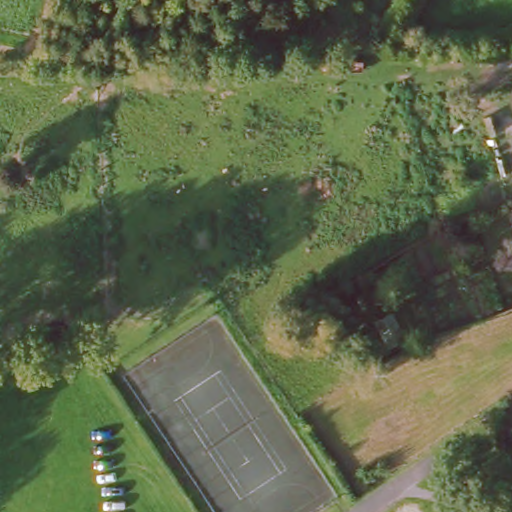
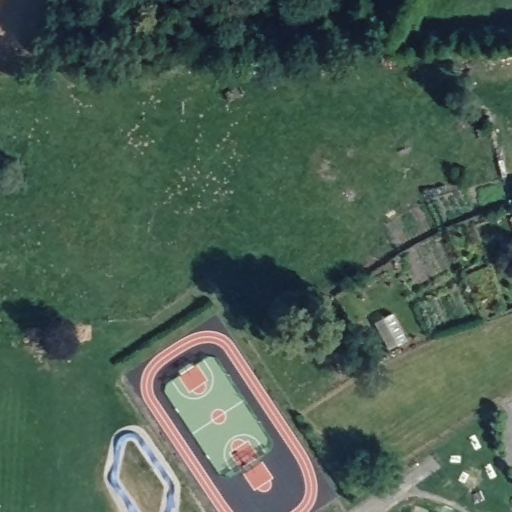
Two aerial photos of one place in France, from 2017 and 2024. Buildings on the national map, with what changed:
[]

